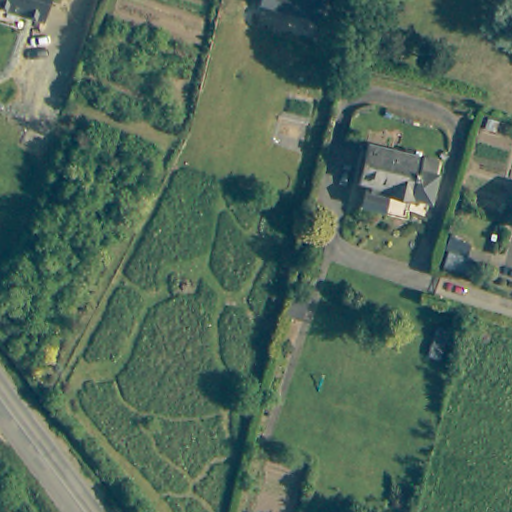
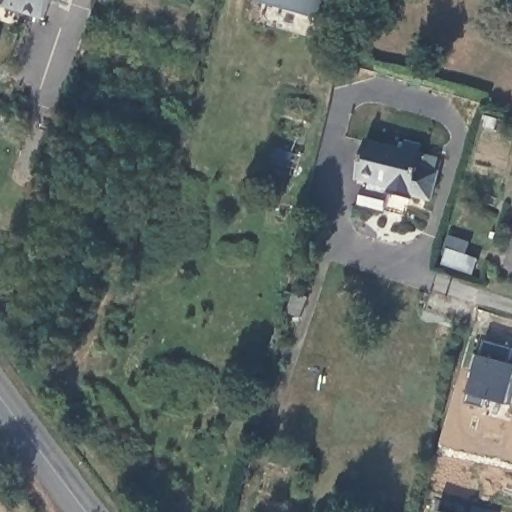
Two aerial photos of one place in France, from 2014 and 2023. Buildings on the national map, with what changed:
unchanged [(0,2),(0,0),(49,0),(42,19),(0,2)]
unchanged [(258,2),(259,0),(326,0),(320,19),(258,2)]
unchanged [(370,132),(423,146),(421,158),(439,162),(432,188),(412,183),(405,207),(362,195),(368,171),(361,169),(370,132)]
new [(470,369),(475,352),(480,353),(485,337),(512,345),(512,355),(510,361),(512,362),(512,404),(488,396),(485,406),(466,401),(475,371),(470,369)]

